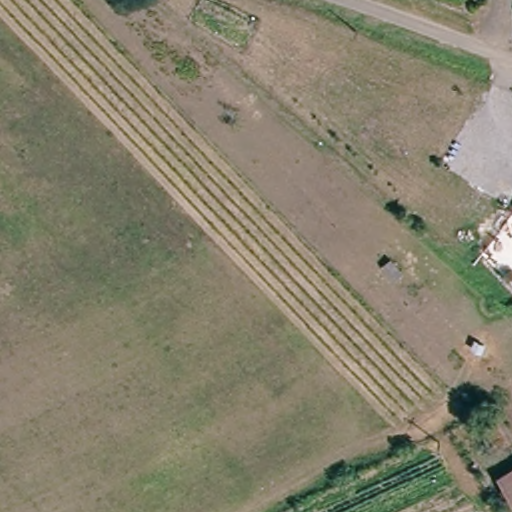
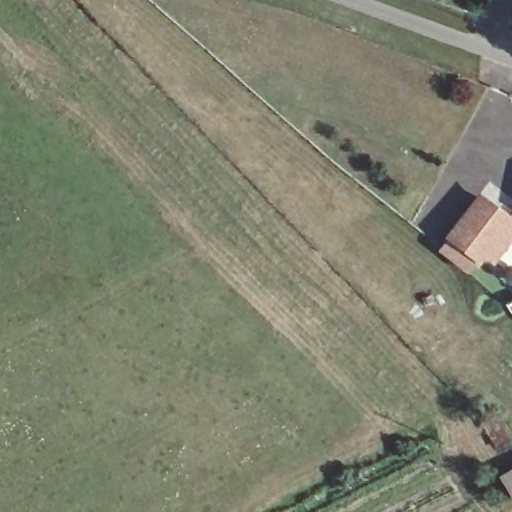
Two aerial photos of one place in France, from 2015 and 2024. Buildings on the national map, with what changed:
new [(512,219),(512,238),(494,263),(484,257),(478,264),(473,261),(464,272),(438,250),(446,239),(442,237),(477,191),(512,219)]
unchanged [(512,467),(512,501),(496,476),(512,467)]

